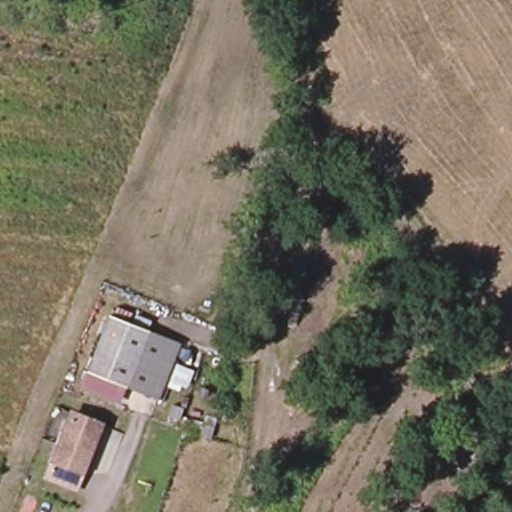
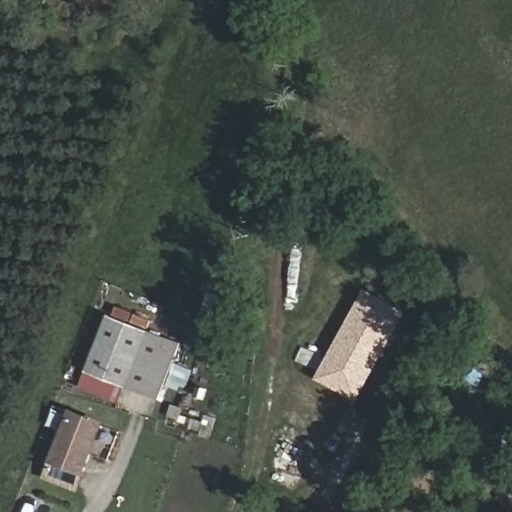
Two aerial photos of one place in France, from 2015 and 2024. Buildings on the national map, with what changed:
new [(366,287),(408,312),(358,401),(317,378),(366,287)]
unchanged [(160,400),(127,386),(121,402),(80,386),(108,313),(182,342),(160,400)]
unchanged [(73,415),(101,427),(81,473),(54,461),(73,415)]

